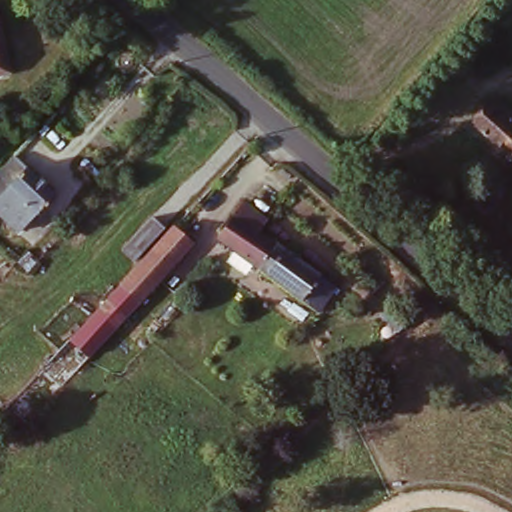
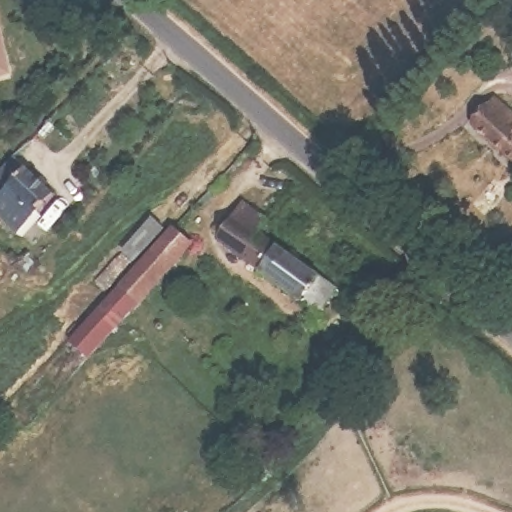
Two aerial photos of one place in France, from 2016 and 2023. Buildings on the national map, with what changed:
unchanged [(5,73),(0,75),(0,53),(5,73)]
unchanged [(512,158),(472,120),(497,95),(512,108),(512,158)]
unchanged [(224,147),(238,159),(223,175),(210,162),(224,147)]
unchanged [(10,157),(53,195),(19,236),(0,222),(0,169),(10,157)]
unchanged [(248,202),(275,222),(263,238),(334,291),(318,312),(216,238),(248,202)]
unchanged [(144,216),(157,230),(127,263),(115,249),(144,216)]
unchanged [(172,226),(191,242),(53,386),(36,371),(172,226)]

